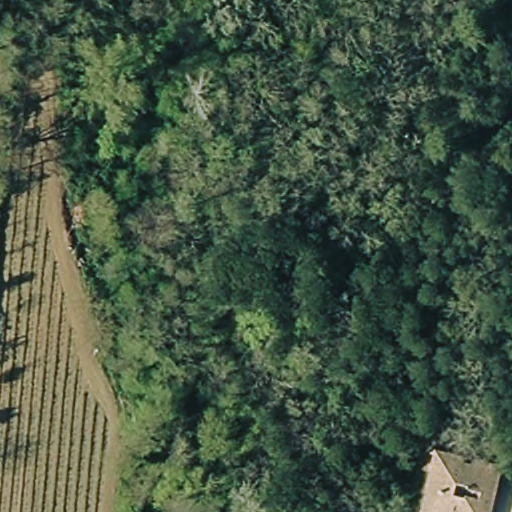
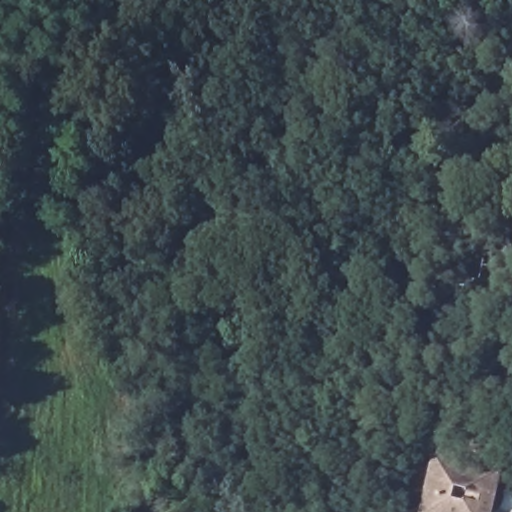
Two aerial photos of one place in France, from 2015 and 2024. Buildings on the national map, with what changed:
unchanged [(466,463),(468,469),(475,471),(479,466),(505,470),(498,512),(430,512),(440,458),(466,463)]

